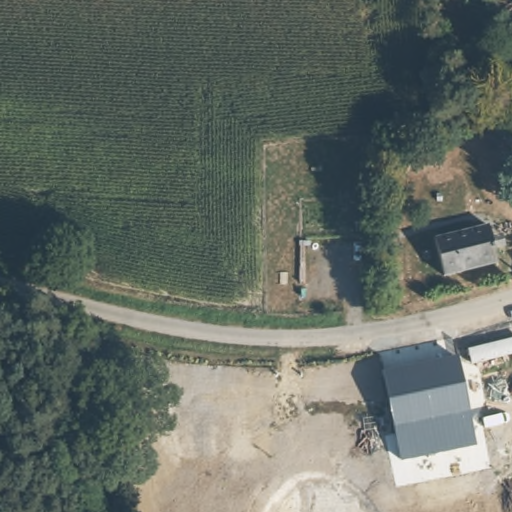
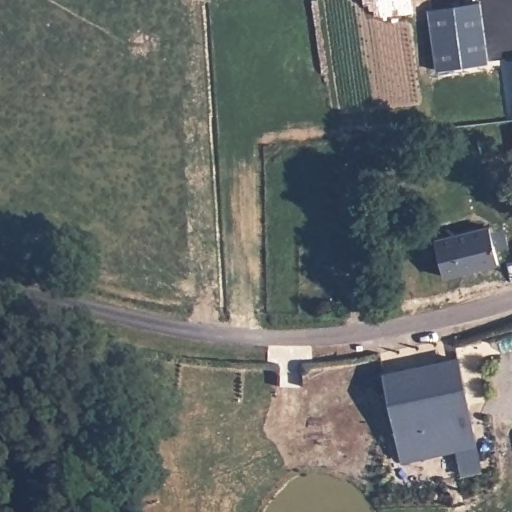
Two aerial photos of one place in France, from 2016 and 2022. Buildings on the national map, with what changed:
new [(486,63),(437,70),(427,9),(479,2),(486,63)]
unchanged [(443,269),(437,233),(487,224),(495,259),(443,269)]
unchanged [(463,357),(473,405),(395,420),(385,374),(463,357)]
unchanged [(395,420),(473,405),(481,444),(403,459),(397,430),(395,420)]

